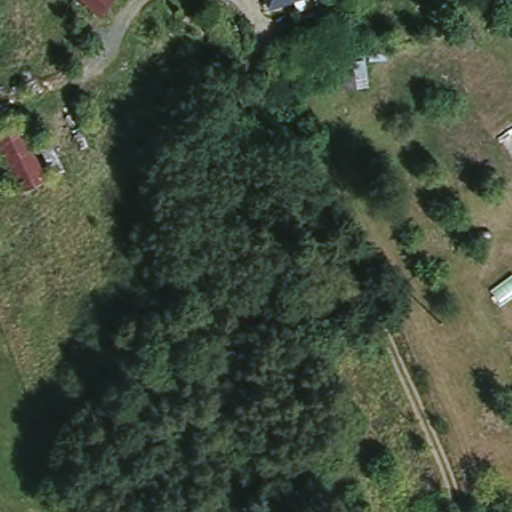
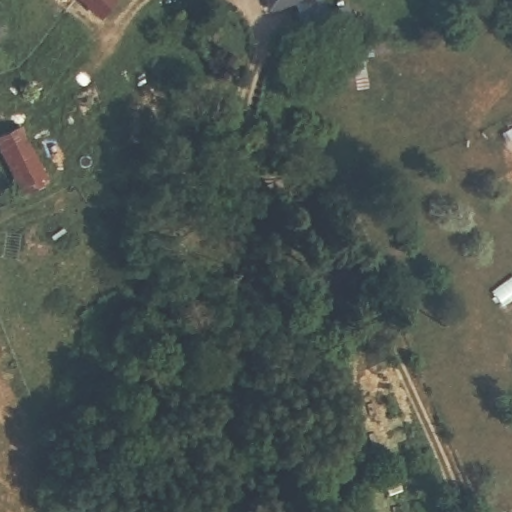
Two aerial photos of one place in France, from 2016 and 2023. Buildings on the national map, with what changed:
unchanged [(96,20),(76,0),(111,0),(96,20)]
unchanged [(262,6),(261,0),(284,0),(262,6)]
unchanged [(10,105),(47,198),(23,207),(0,148),(0,109),(10,105)]

